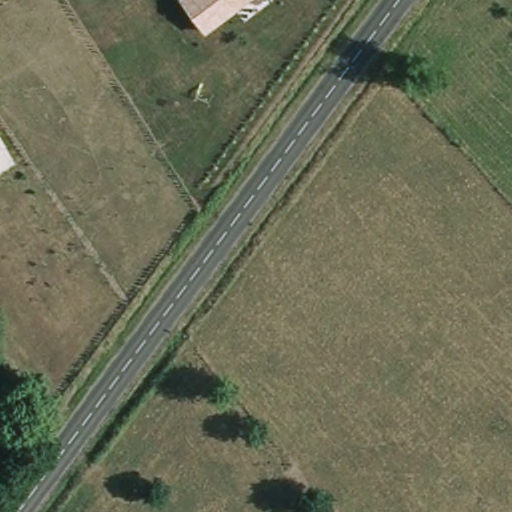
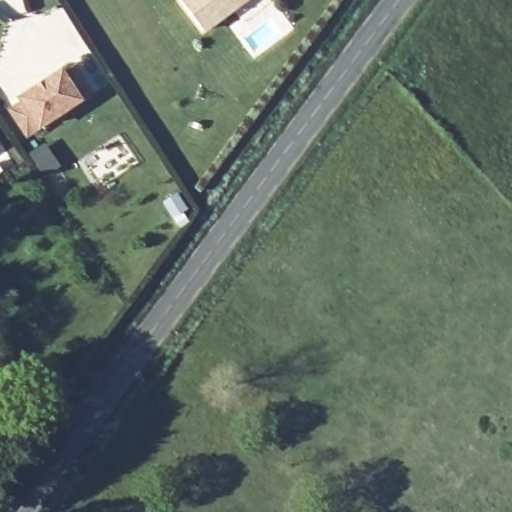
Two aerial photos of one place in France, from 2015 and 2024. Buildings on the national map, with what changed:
unchanged [(181,0),(250,0),(204,32),(181,0)]
new [(16,100),(33,89),(40,84),(57,72),(60,76),(71,69),(88,94),(77,101),(24,137),(7,112),(19,105),(16,100)]

